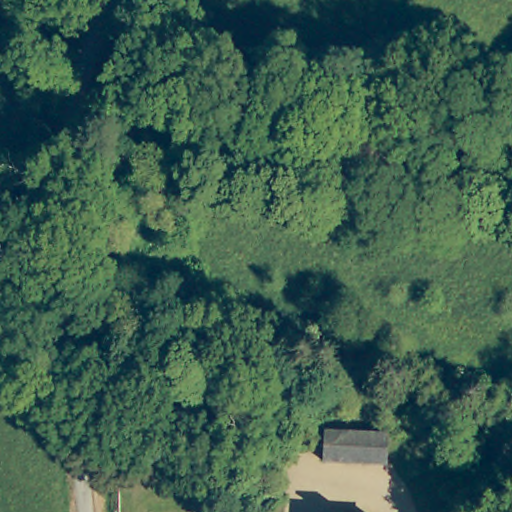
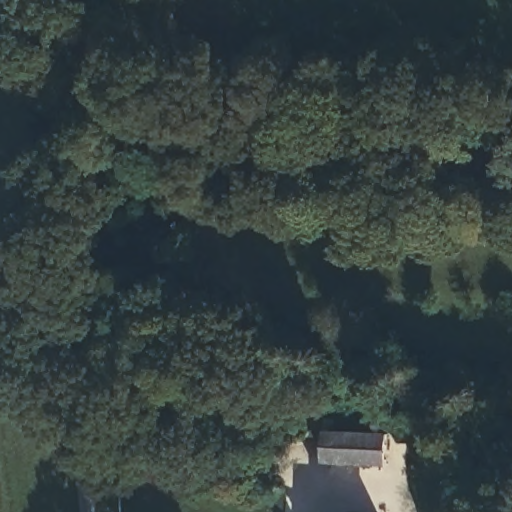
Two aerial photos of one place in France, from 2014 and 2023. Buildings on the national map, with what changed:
unchanged [(325,432),(387,434),(386,464),(324,462),(325,432)]

